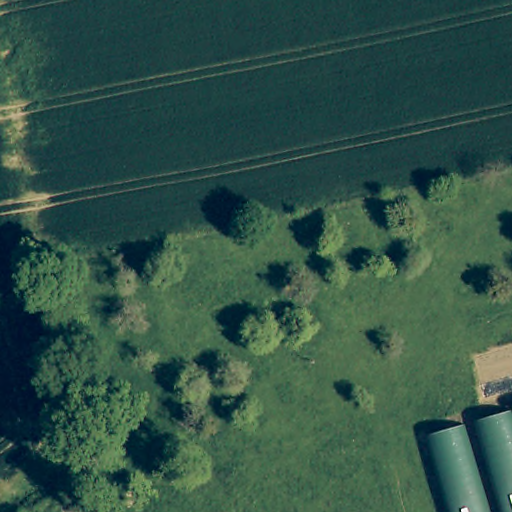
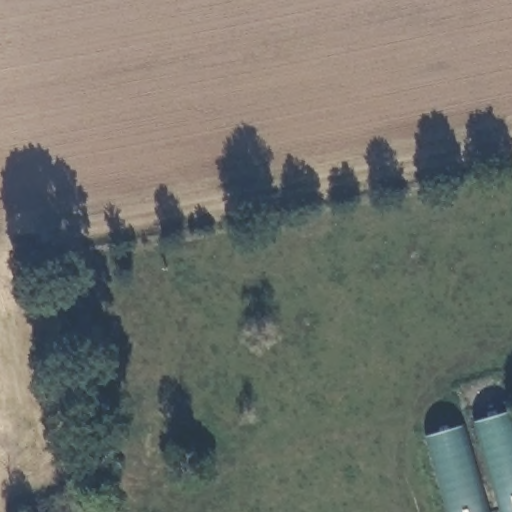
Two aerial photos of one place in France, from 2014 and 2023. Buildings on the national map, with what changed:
unchanged [(512,411),(512,413),(512,512),(497,512),(471,422),(512,411)]
unchanged [(446,512),(423,436),(463,424),(488,512),(446,512)]

